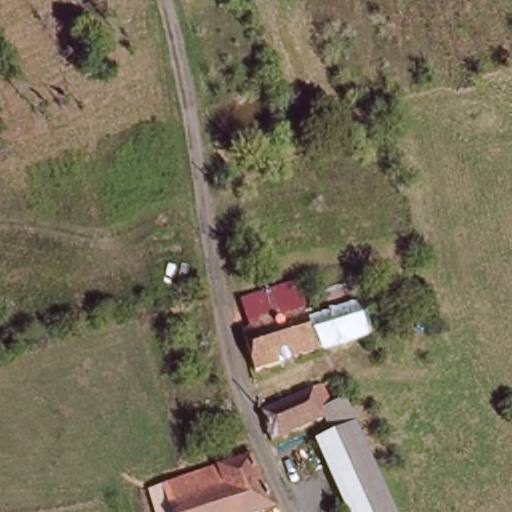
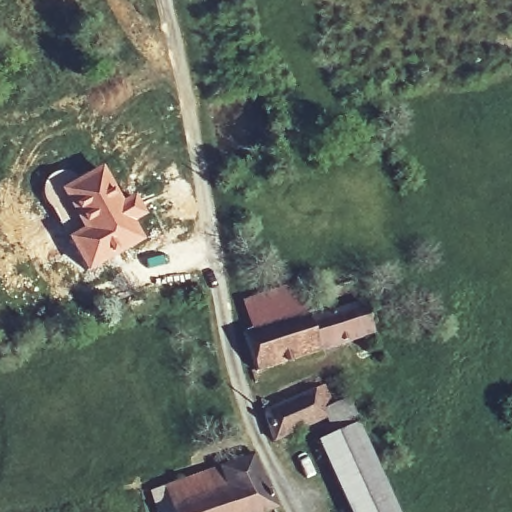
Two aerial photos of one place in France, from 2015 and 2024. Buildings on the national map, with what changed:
new [(120,200),(132,195),(143,217),(133,223),(142,241),(86,274),(65,237),(78,229),(71,218),(60,225),(43,199),(42,188),(43,182),(66,169),(69,173),(60,178),(64,184),(100,166),(120,200)]
unchanged [(290,286),(298,311),(249,329),(240,301),(290,286)]
unchanged [(301,320),(355,303),(365,334),(250,374),(236,333),(249,329),(298,311),(301,320)]
unchanged [(267,443),(258,416),(308,394),(321,389),(326,403),(313,408),(320,423),(267,443)]
unchanged [(320,462),(310,440),(351,423),(361,444),(320,462)]
unchanged [(392,512),(343,512),(320,462),(361,444),(365,453),(392,512)]
unchanged [(246,462),(250,461),(270,512),(153,512),(148,495),(246,462)]

